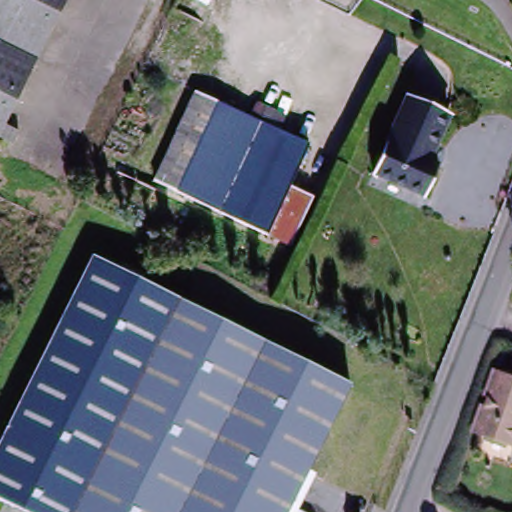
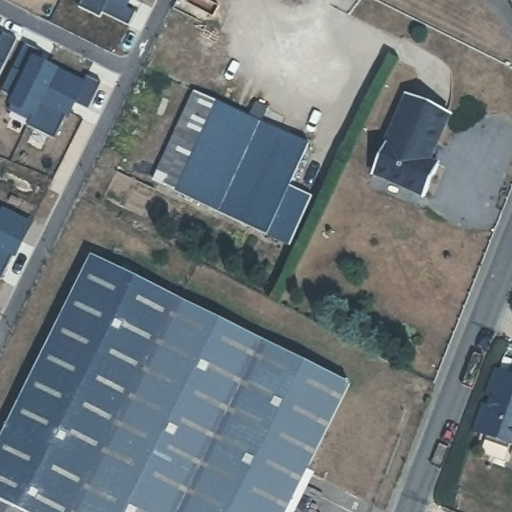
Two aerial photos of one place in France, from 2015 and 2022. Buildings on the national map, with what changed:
demolished [(2,125),(14,131),(7,147),(0,144),(0,0),(64,0),(2,125)]
new [(83,0),(131,0),(127,9),(136,13),(129,27),(103,14),(100,19),(79,8),(83,0)]
new [(17,41),(0,76),(0,40),(3,33),(17,41)]
new [(26,44),(40,51),(36,61),(55,70),(30,122),(8,112),(15,100),(2,93),(26,44)]
new [(30,122),(55,70),(84,84),(87,77),(101,84),(88,111),(75,104),(69,116),(67,115),(55,141),(27,127),(30,122)]
unchanged [(198,89),(223,101),(178,192),(152,179),(198,89)]
unchanged [(424,198),(368,175),(398,97),(445,116),(427,160),(437,165),(424,198)]
unchanged [(287,245),(178,192),(223,101),(249,114),(255,102),(283,116),(277,128),(312,146),(291,188),(311,197),(287,245)]
demolished [(0,179),(0,173),(2,174),(0,179)]
new [(31,225),(16,255),(14,254),(1,279),(0,279),(0,213),(2,210),(31,225)]
unchanged [(350,389),(289,512),(13,512),(0,505),(0,446),(92,261),(180,304),(350,389)]
unchanged [(485,439),(506,378),(512,380),(512,449),(485,439)]

